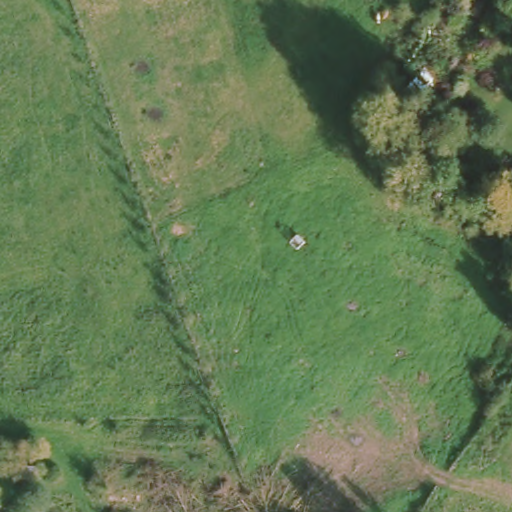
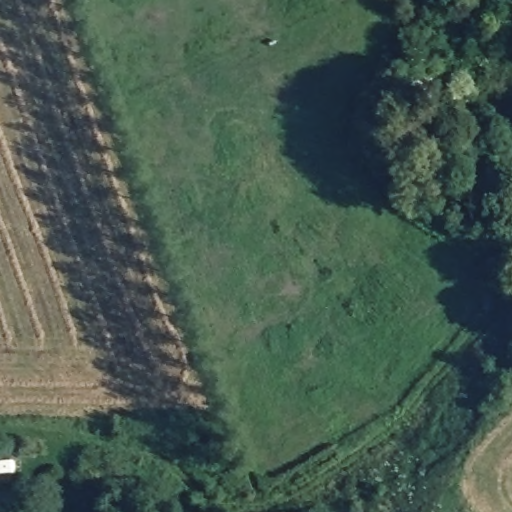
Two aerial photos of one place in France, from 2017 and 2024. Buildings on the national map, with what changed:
unchanged [(388,136),(403,175),(390,180),(375,141),(388,136)]

